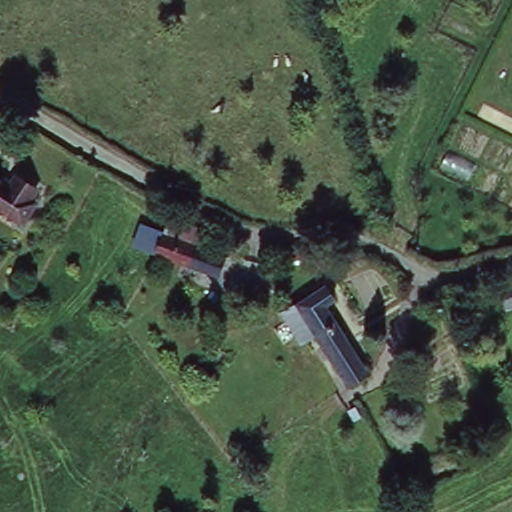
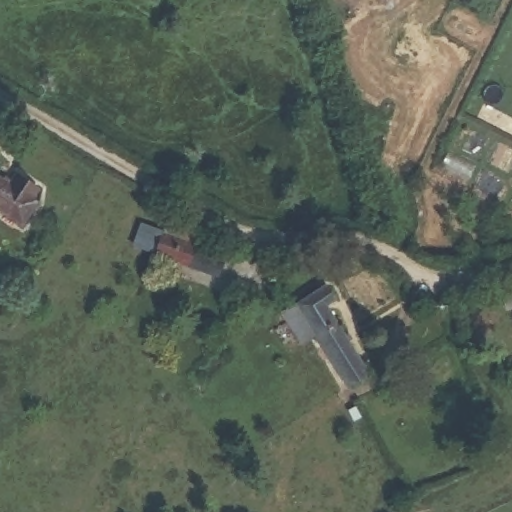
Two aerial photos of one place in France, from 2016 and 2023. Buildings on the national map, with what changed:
unchanged [(10,182),(17,172),(41,188),(34,197),(40,201),(25,226),(0,210),(0,175),(10,182)]
unchanged [(133,244),(141,222),(167,235),(175,217),(204,234),(197,249),(227,261),(218,281),(163,257),(133,244)]
unchanged [(327,280),(337,296),(328,304),(370,371),(348,385),(295,302),(327,280)]
unchanged [(512,295),(512,313),(506,315),(500,300),(512,295)]

